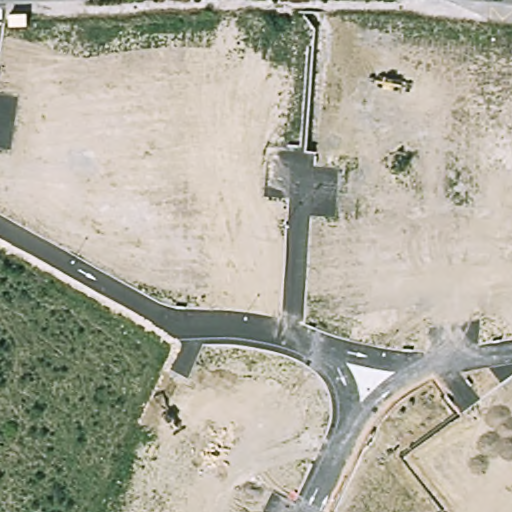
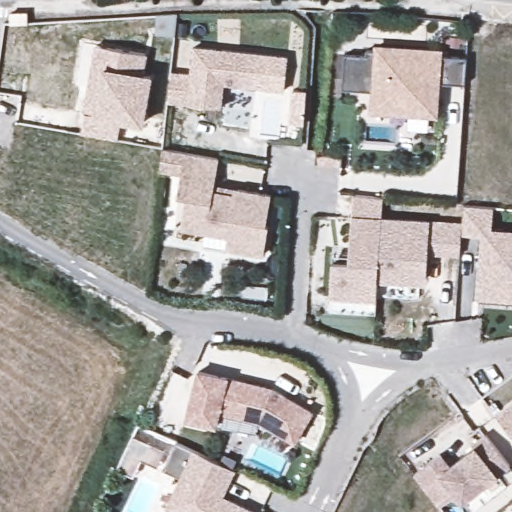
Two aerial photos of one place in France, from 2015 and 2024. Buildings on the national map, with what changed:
new [(84,44),(145,55),(141,76),(150,77),(142,124),(121,121),(117,141),(83,135),(90,90),(77,87),(84,44)]
new [(374,89),(342,87),(345,52),(366,54),(367,48),(376,49),(376,45),(441,49),(440,55),(466,57),(464,83),(439,81),(436,114),(406,111),(372,109),(372,105),(374,89)]
new [(171,74),(190,76),(194,48),(259,55),(255,88),(223,85),(221,109),(168,103),(171,74)]
new [(162,149),(218,159),(213,186),(267,195),(262,223),(267,224),(261,255),(224,249),(226,237),(180,229),(185,199),(176,197),(180,175),(160,171),(162,149)]
new [(479,287),(482,237),(461,236),(459,255),(445,254),(428,252),(427,258),(425,283),(419,283),(377,280),(376,299),(329,296),(332,261),(348,262),(353,197),(383,199),(381,219),(447,223),(462,224),(463,205),(493,207),(491,231),(512,232),(512,299),(478,297),(479,287)]
new [(198,372),(272,389),(312,412),(295,442),(259,422),(219,412),(216,427),(186,420),(198,372)]
new [(512,402),(512,433),(497,414),(512,402)]
new [(437,456),(447,469),(471,450),(469,447),(486,434),(510,465),(462,502),(456,495),(441,507),(416,473),(437,456)]
new [(234,470),(221,497),(253,512),(174,512),(166,508),(180,479),(162,470),(176,442),(234,470)]

